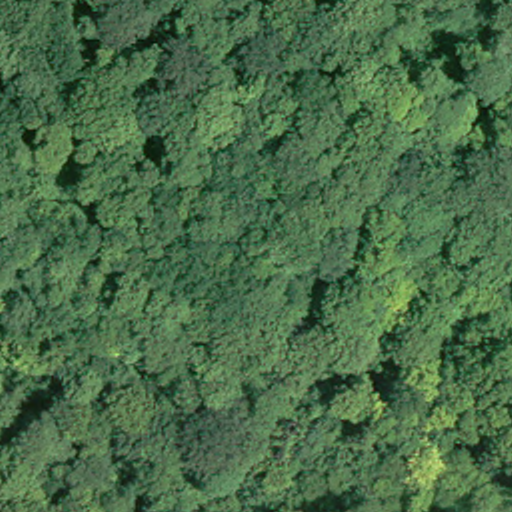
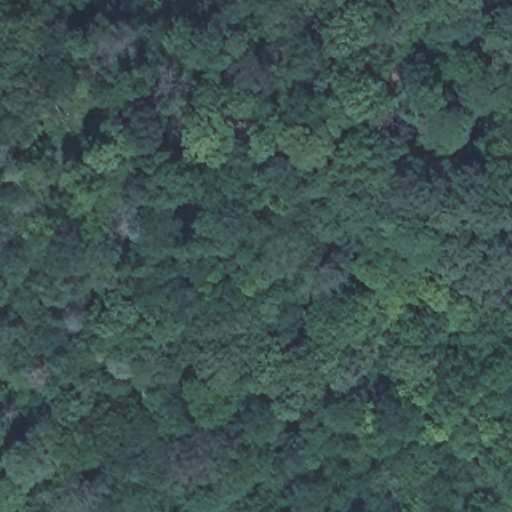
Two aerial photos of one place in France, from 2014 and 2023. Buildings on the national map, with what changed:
unchanged [(101,484),(100,440),(144,439),(144,483),(101,484)]

